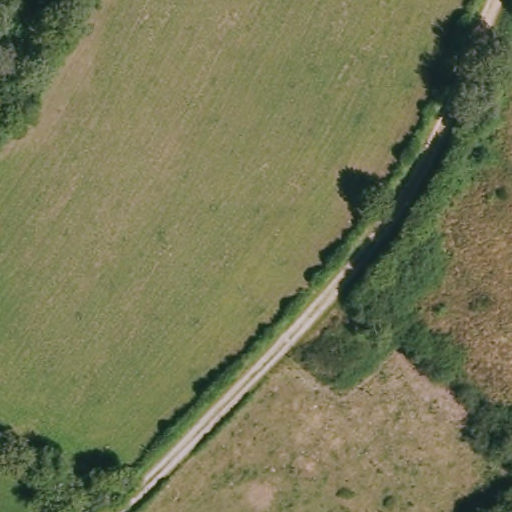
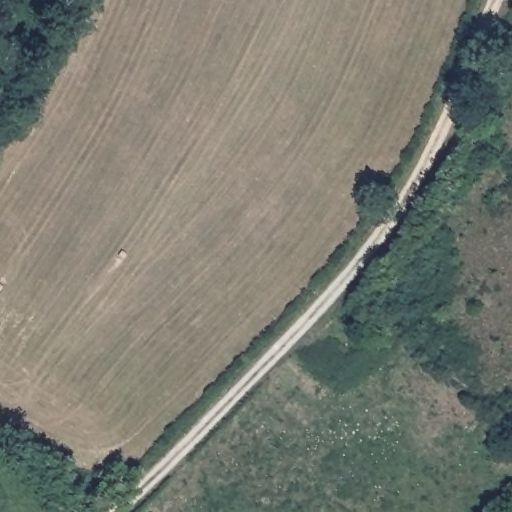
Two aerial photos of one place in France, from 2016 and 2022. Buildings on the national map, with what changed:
unchanged [(378,340),(323,393),(294,363),(349,311),(378,340)]

